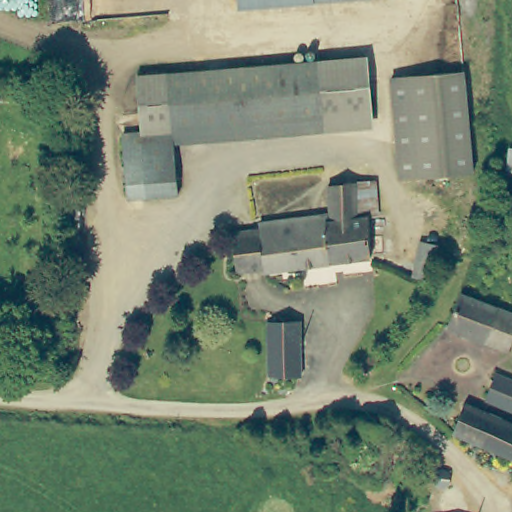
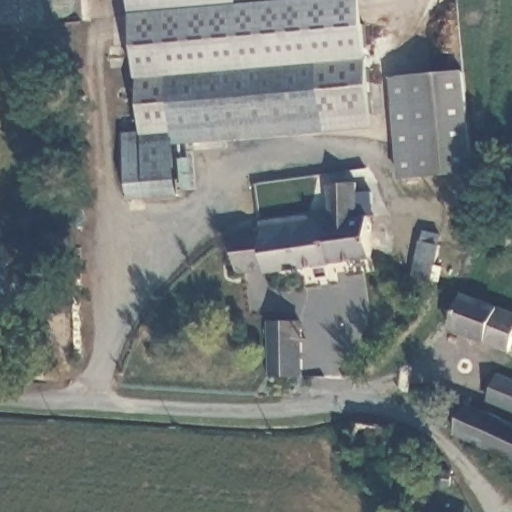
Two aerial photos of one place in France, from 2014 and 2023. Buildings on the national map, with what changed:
new [(360,0),(364,62),(137,80),(130,0),(360,0)]
unchanged [(165,134),(141,135),(137,80),(364,62),(368,120),(166,136),(165,134)]
unchanged [(392,80),(463,75),(471,171),(401,177),(392,80)]
unchanged [(59,87),(59,101),(41,100),(42,87),(59,87)]
unchanged [(141,135),(165,134),(166,136),(170,195),(129,198),(126,175),(122,175),(121,169),(126,168),(124,136),(141,135)]
unchanged [(372,260),(237,276),(234,240),(261,236),(260,230),(330,221),(330,229),(336,227),(333,201),(360,198),(375,196),(377,214),(367,215),(370,234),(372,260)]
unchanged [(507,212),(503,232),(487,229),(492,210),(507,212)]
unchanged [(436,244),(428,277),(411,273),(418,240),(436,244)]
unchanged [(512,346),(510,352),(447,329),(452,317),(460,296),(510,315),(512,316),(512,346)]
unchanged [(270,310),(300,308),(302,372),(300,372),(300,388),(272,388),(270,310)]
unchanged [(512,413),(485,402),(498,372),(512,378),(512,413)]
unchanged [(467,403),(480,409),(512,424),(512,459),(454,431),(467,403)]
unchanged [(341,476),(351,417),(385,422),(385,426),(399,430),(396,445),(382,443),(375,481),(341,476)]

